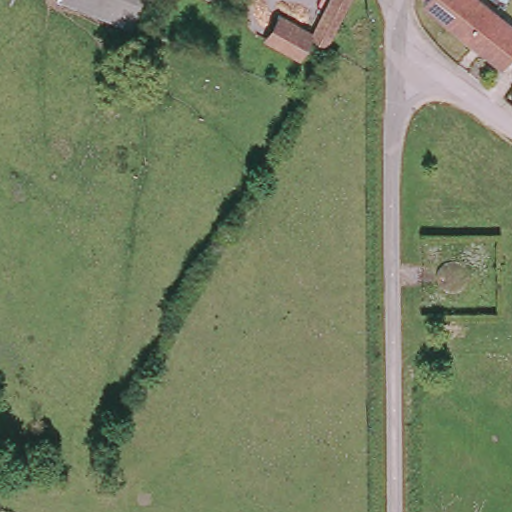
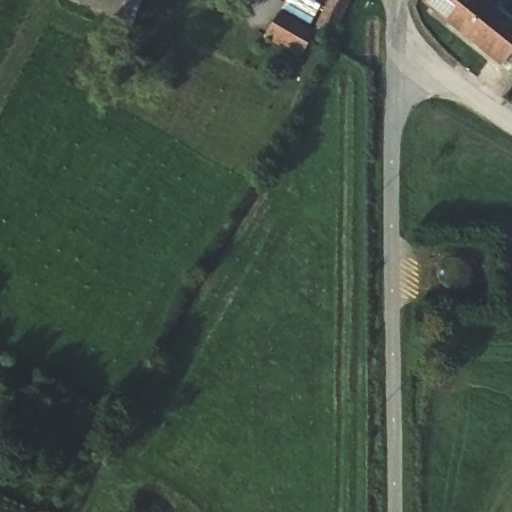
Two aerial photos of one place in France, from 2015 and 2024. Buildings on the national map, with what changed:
unchanged [(72,0),(144,0),(134,24),(72,0)]
unchanged [(330,41),(316,34),(314,33),(331,0),(350,0),(350,1),(330,41)]
unchanged [(423,1),(424,0),(484,0),(512,22),(512,51),(501,66),(423,1)]
unchanged [(315,30),(300,59),(265,39),(280,12),(315,30)]

